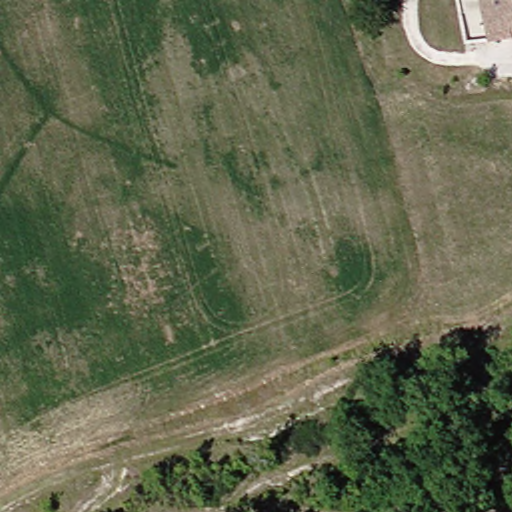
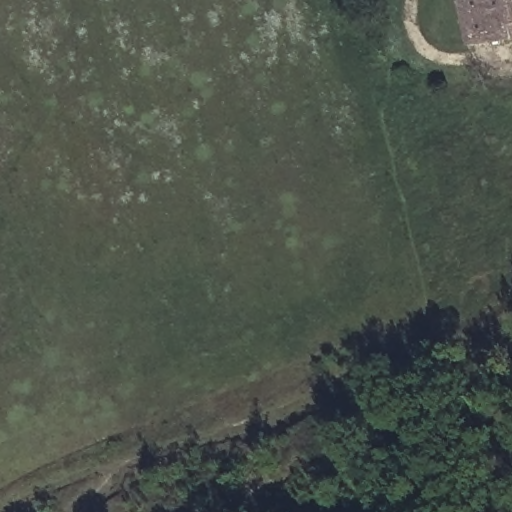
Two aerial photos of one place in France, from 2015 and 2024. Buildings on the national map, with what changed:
unchanged [(461,0),(512,0),(512,39),(469,47),(461,0)]

